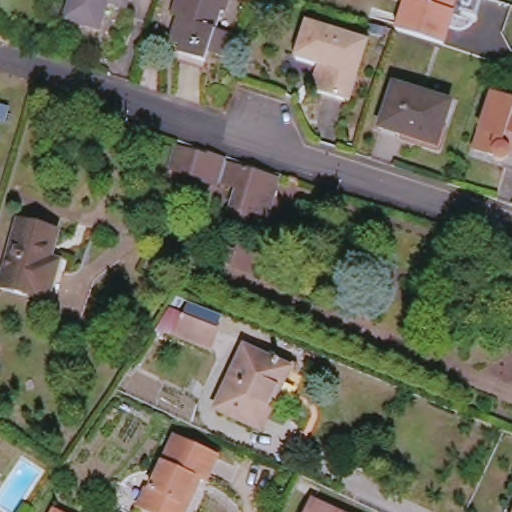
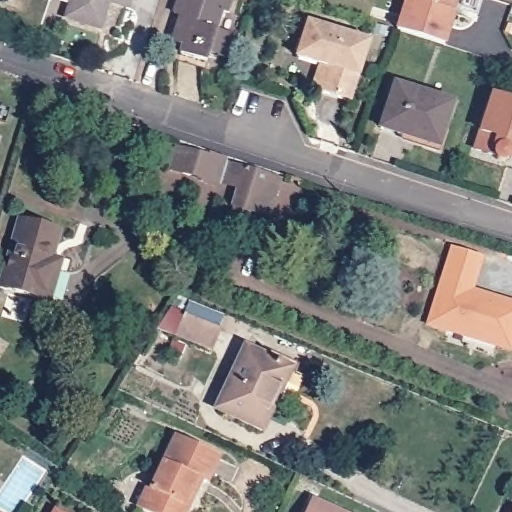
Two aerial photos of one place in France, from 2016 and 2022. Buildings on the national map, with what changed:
unchanged [(132,8),(115,2),(105,29),(71,17),(77,0),(135,0),(132,8)]
unchanged [(229,14),(227,13),(220,31),(237,36),(228,57),(212,52),(210,61),(185,52),(188,42),(178,39),(186,17),(179,14),(183,0),(234,0),(229,14)]
unchanged [(458,5),(443,1),(440,10),(448,12),(438,44),(400,32),(410,1),(406,0),(460,0),(458,5)]
unchanged [(353,102),(322,92),(330,67),(300,58),(311,23),(372,42),(353,102)]
unchanged [(437,146),(380,127),(394,84),(451,103),(437,146)]
unchanged [(508,160),(505,161),(499,161),(494,159),(492,156),(474,150),(492,95),(512,102),(512,113),(512,158),(510,157),(508,160)]
unchanged [(0,143),(0,138),(2,138),(0,143)]
unchanged [(210,158),(227,163),(225,166),(229,167),(228,169),(236,171),(237,170),(278,185),(267,222),(230,211),(236,192),(218,187),(217,190),(200,185),(200,183),(171,174),(178,152),(208,161),(210,158)]
unchanged [(48,270),(58,272),(50,302),(0,288),(20,220),(60,232),(48,270)]
unchanged [(230,264),(218,260),(222,246),(235,250),(230,264)]
new [(451,247),(482,258),(473,289),(512,303),(512,351),(511,354),(427,326),(451,247)]
unchanged [(220,347),(187,333),(178,329),(183,321),(188,312),(195,314),(228,329),(220,347)]
unchanged [(267,407),(271,409),(262,429),(217,408),(246,347),(287,366),(267,407)]
unchanged [(191,473),(187,483),(192,486),(180,512),(145,512),(137,508),(171,435),(214,456),(203,479),(191,473)]
unchanged [(341,512),(307,512),(313,498),(341,512)]

